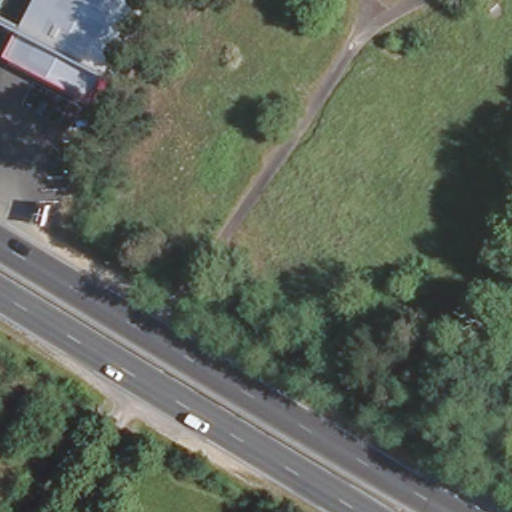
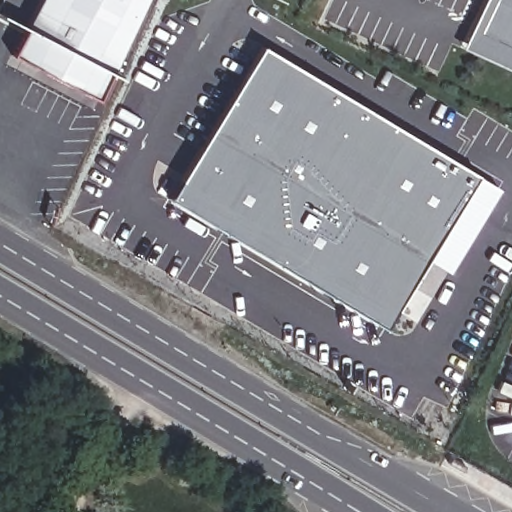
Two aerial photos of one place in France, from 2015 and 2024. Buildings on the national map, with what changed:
unchanged [(98,99),(14,53),(41,0),(143,0),(98,99)]
new [(467,47),(490,0),(512,0),(512,67),(467,47)]
new [(500,190),(450,273),(426,258),(386,326),(172,199),(262,48),(500,190)]

